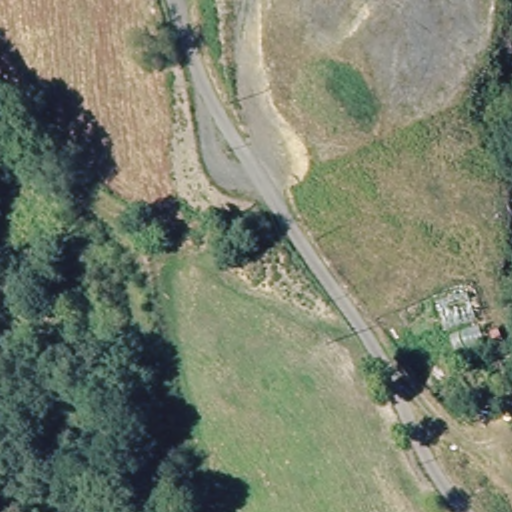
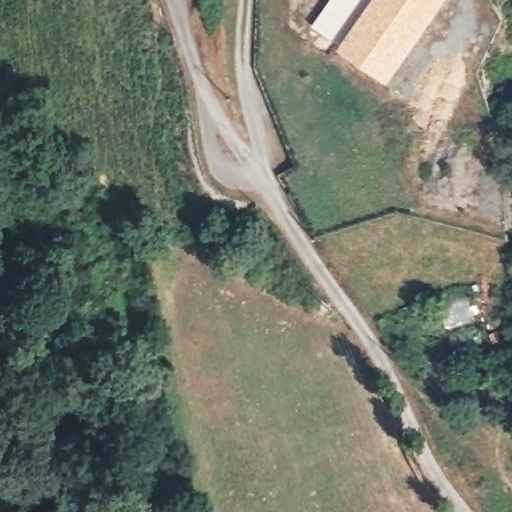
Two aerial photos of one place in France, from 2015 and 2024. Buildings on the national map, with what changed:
new [(387,82),(337,50),(342,44),(313,26),(331,0),(445,0),(387,82)]

